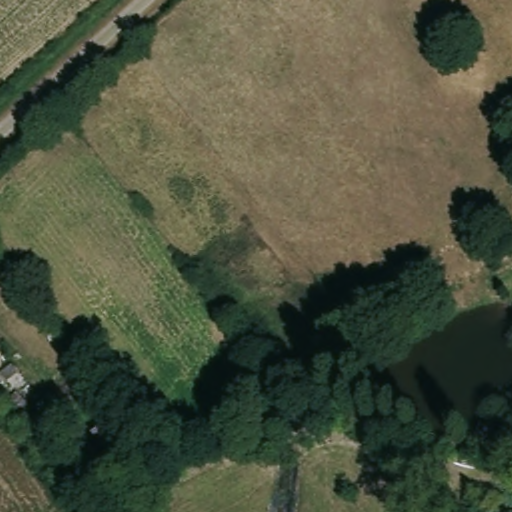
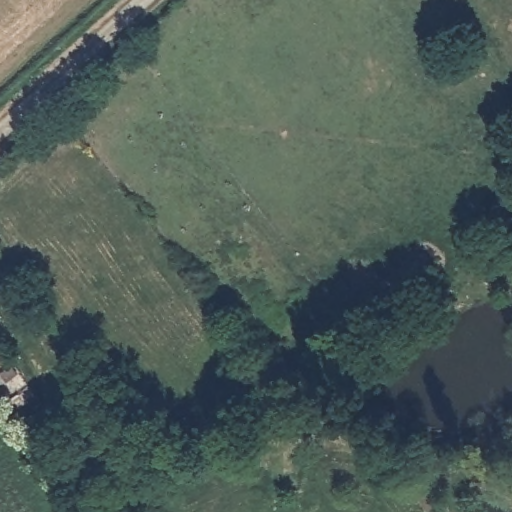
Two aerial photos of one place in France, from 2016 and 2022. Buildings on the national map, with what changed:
unchanged [(69,351),(130,428),(107,450),(45,370),(69,351)]

